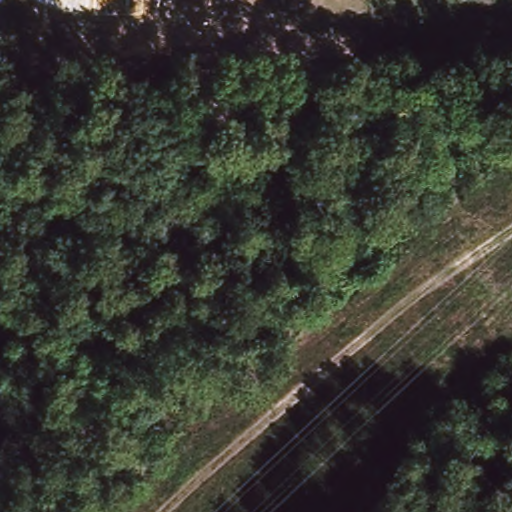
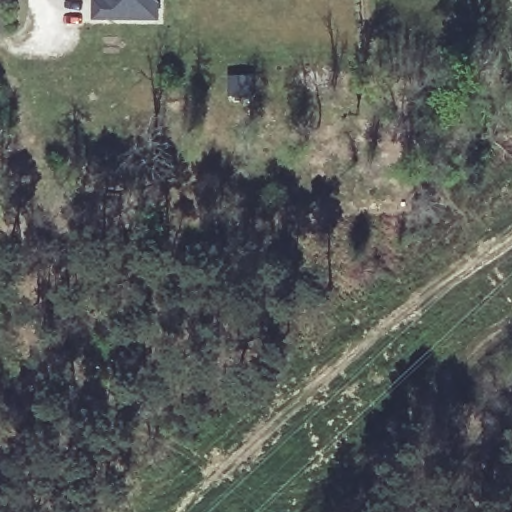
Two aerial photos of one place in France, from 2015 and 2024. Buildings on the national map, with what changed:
new [(143,16),(95,14),(96,0),(158,0),(159,1),(158,16),(143,16)]

